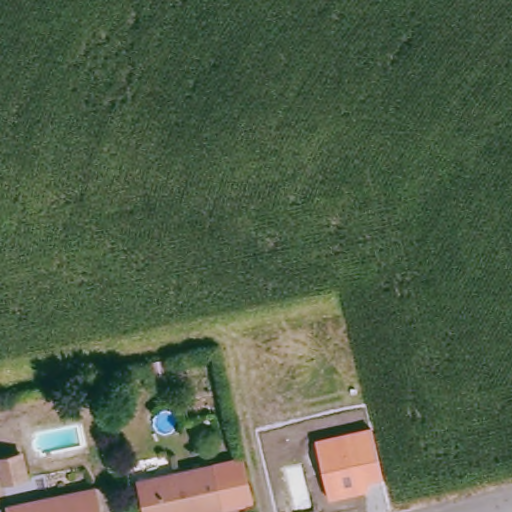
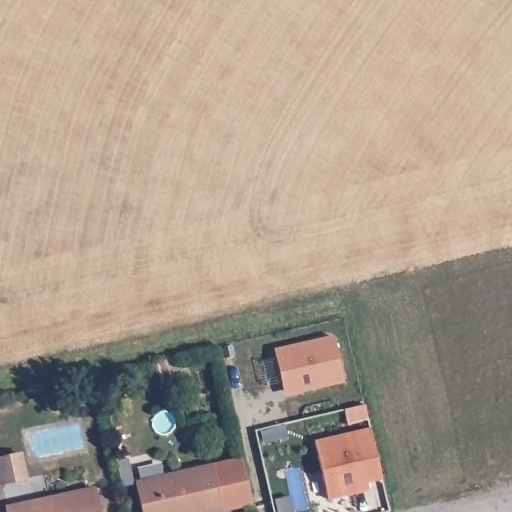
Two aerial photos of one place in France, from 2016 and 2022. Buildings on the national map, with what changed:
new [(275,350),(333,336),(345,383),(285,396),(275,350)]
unchanged [(163,359),(170,387),(158,390),(150,362),(163,359)]
unchanged [(315,441),(371,428),(383,479),(366,483),(369,492),(330,501),(315,441)]
unchanged [(20,480),(0,485),(0,457),(15,454),(20,480)]
unchanged [(212,467),(245,460),(255,506),(229,512),(223,512),(212,467)]
unchanged [(137,484),(212,467),(223,512),(143,512),(137,484)]
unchanged [(13,503),(101,482),(109,512),(15,512),(13,503)]

